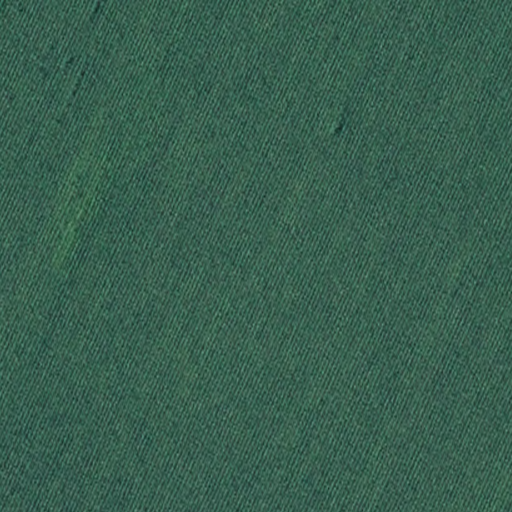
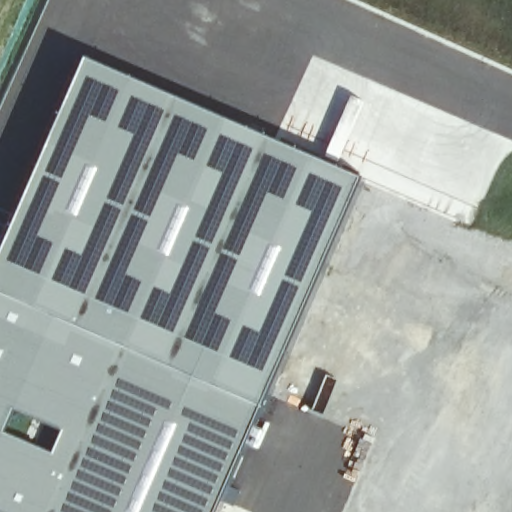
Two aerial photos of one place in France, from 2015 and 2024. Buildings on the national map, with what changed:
new [(364,178),(275,386),(219,512),(0,512),(0,255),(87,58),(364,178)]

